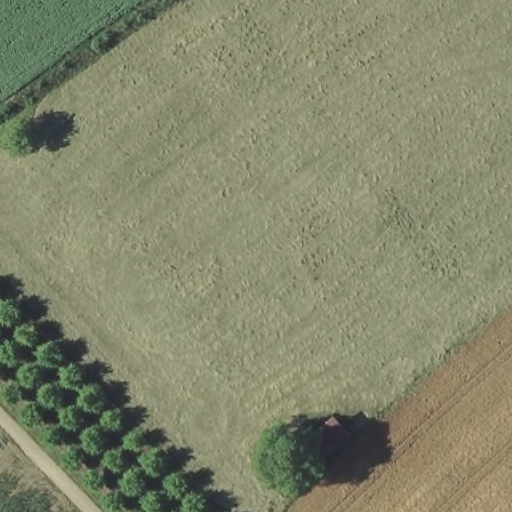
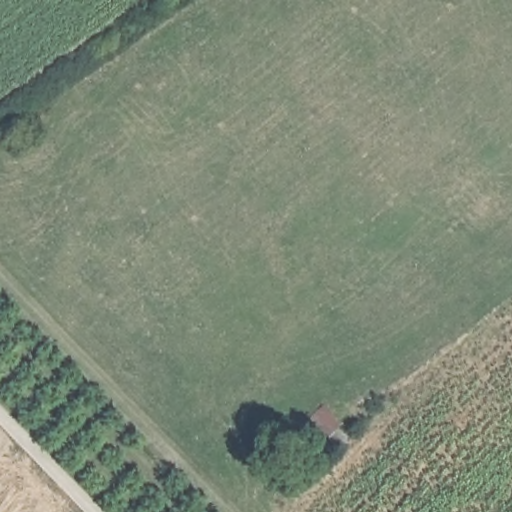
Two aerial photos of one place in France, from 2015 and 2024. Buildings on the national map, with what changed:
unchanged [(357,433),(335,455),(315,433),(341,415),(357,433)]

